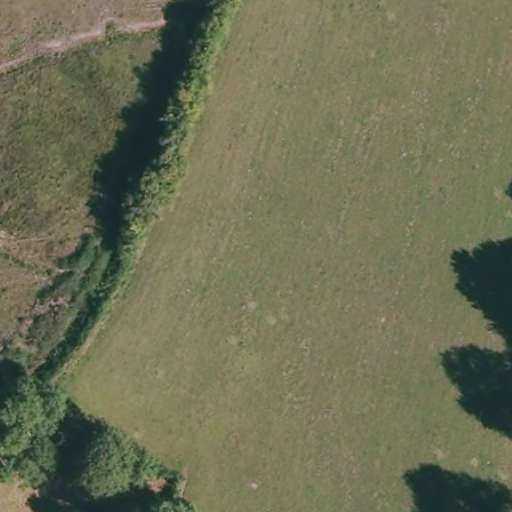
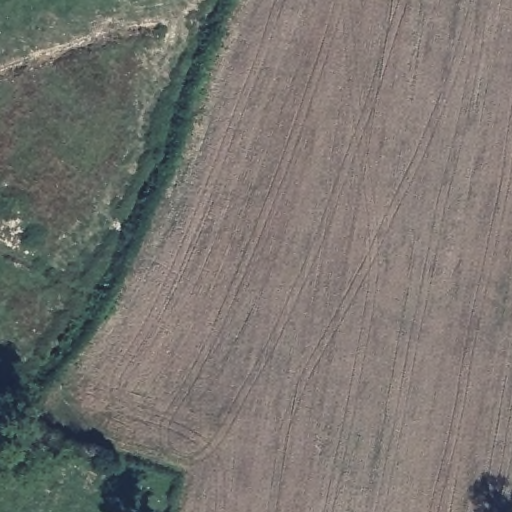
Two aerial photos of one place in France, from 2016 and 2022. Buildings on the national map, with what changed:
[]

